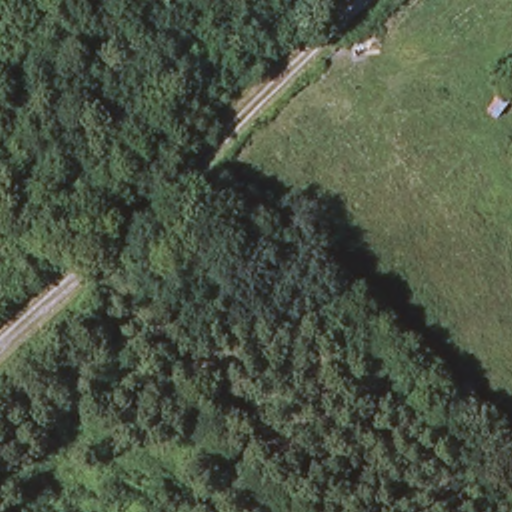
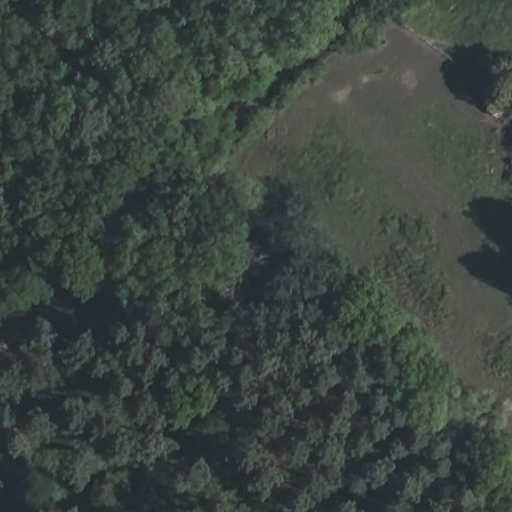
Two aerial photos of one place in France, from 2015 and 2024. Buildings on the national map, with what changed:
[]

